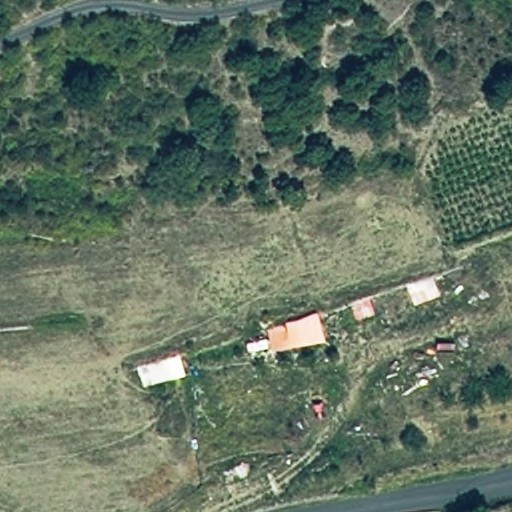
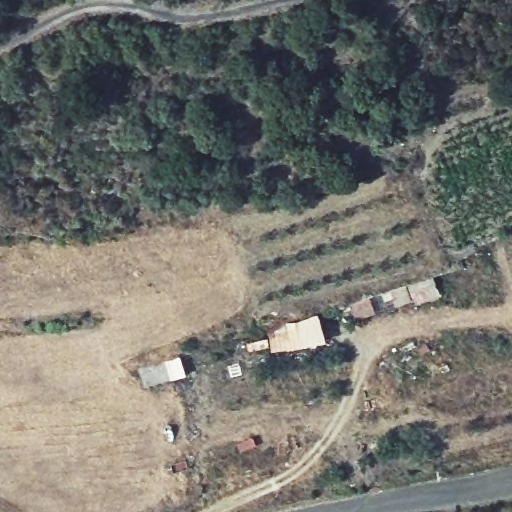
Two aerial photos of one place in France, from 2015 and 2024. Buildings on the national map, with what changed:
unchanged [(266,329),(317,315),(325,339),(270,350),(266,329)]

